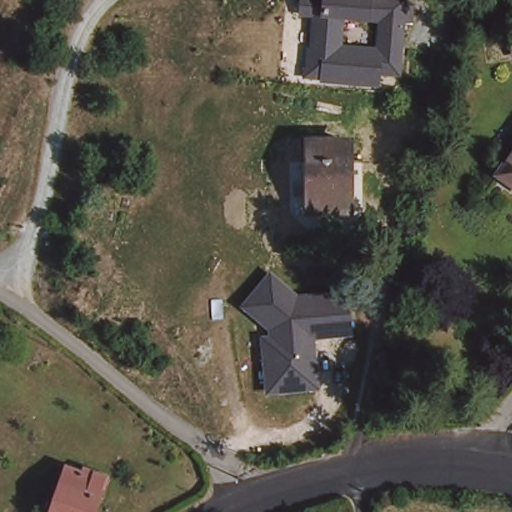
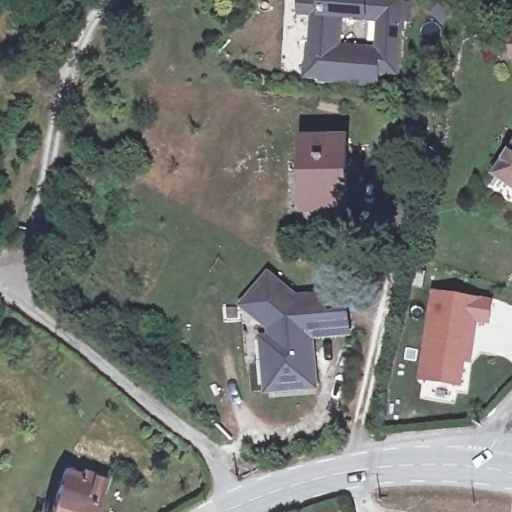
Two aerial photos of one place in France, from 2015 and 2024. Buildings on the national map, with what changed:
unchanged [(402,76),(382,75),(380,87),(305,81),(310,19),(298,18),(301,0),(407,0),(402,76)]
unchanged [(350,141),(350,209),(309,210),(309,141),(350,141)]
unchanged [(512,159),(512,187),(500,177),(512,159)]
unchanged [(272,272),(298,296),(348,291),(353,337),(317,342),(322,391),(267,396),(258,337),(268,337),(270,333),(241,307),(272,272)]
new [(495,307),(492,326),(479,323),(475,354),(468,353),(463,389),(425,383),(438,298),(495,307)]
unchanged [(62,461),(78,466),(80,461),(102,470),(88,511),(88,512),(44,512),(45,507),(62,461)]

